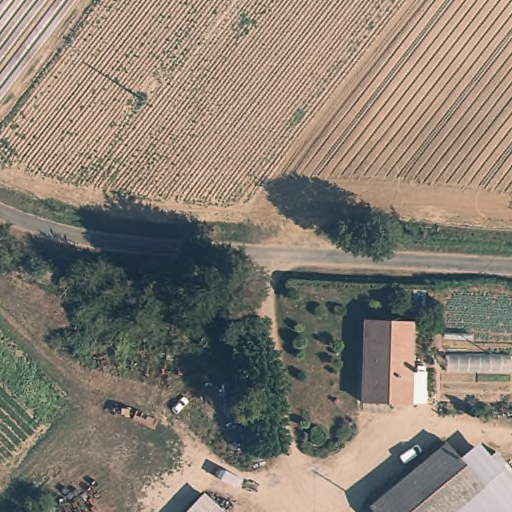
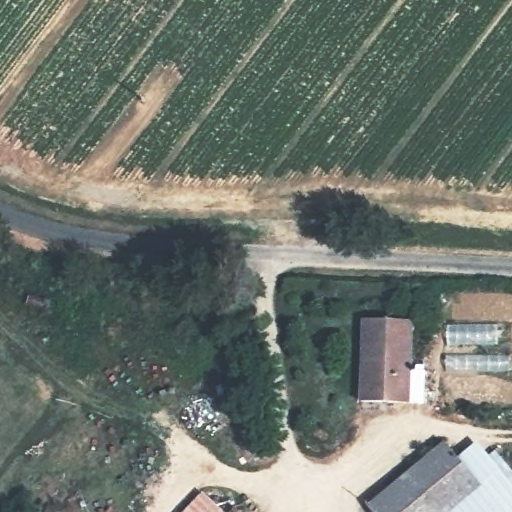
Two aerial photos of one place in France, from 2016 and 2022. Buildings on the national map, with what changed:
unchanged [(408,373),(424,372),(423,404),(361,404),(361,323),(409,324),(408,373)]
unchanged [(444,443),(475,479),(479,486),(501,467),(512,481),(512,512),(375,512),(369,504),(444,443)]
unchanged [(222,512),(185,512),(202,493),(222,512)]

